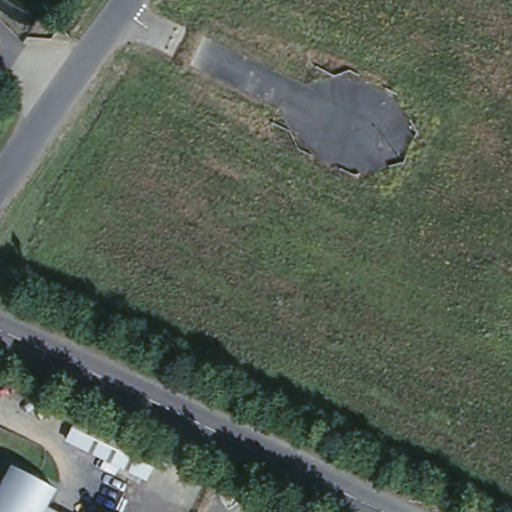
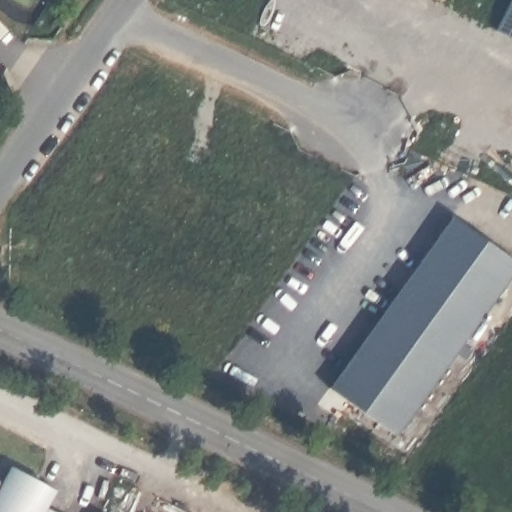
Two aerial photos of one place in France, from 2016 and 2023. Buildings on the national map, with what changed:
new [(510,0),(512,0),(512,37),(495,29),(510,0)]
new [(512,276),(463,345),(470,350),(465,359),(457,353),(397,436),(328,387),(451,216),(512,259),(512,276)]
unchanged [(3,482),(13,464),(57,491),(49,508),(56,512),(0,512),(0,481),(3,482)]

